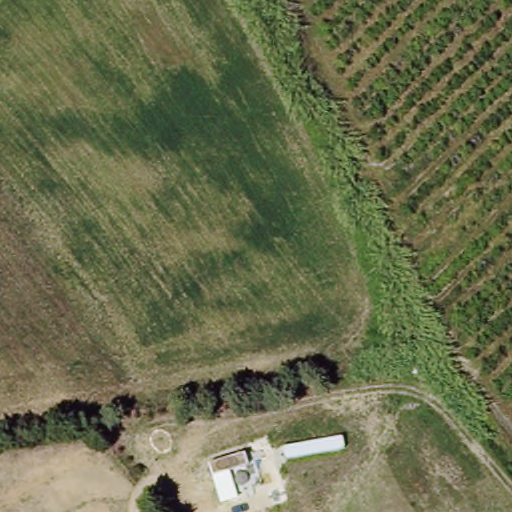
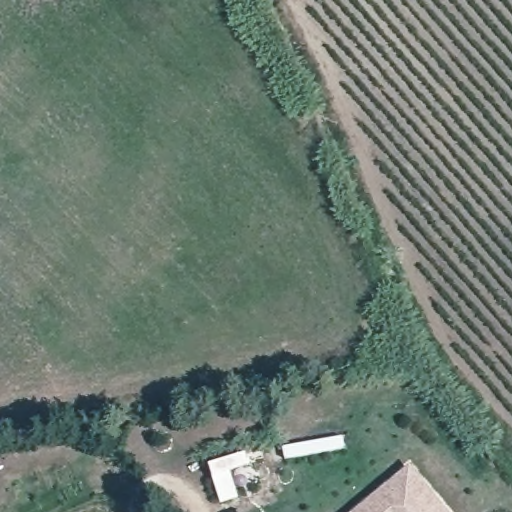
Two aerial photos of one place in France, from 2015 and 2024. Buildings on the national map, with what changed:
unchanged [(245,454),(249,466),(231,470),(239,499),(221,504),(208,465),(245,454)]
new [(410,467),(447,512),(355,512),(410,467)]

